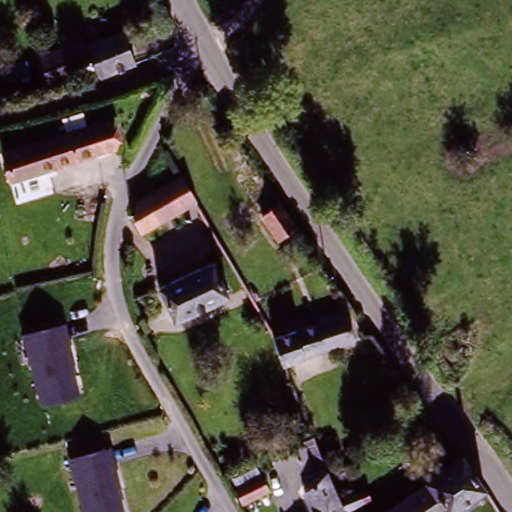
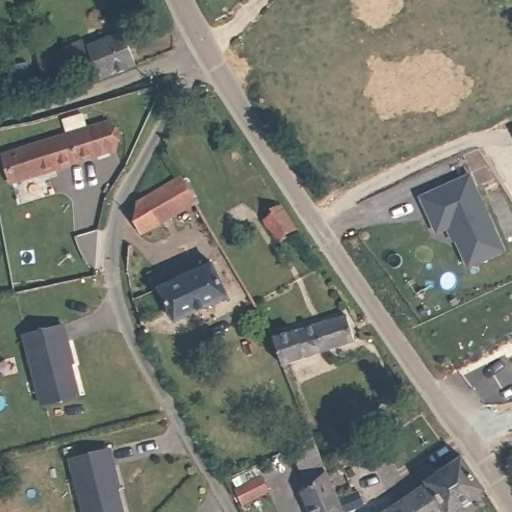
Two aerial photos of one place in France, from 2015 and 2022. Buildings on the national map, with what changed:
unchanged [(90,47),(126,36),(137,68),(99,80),(90,47)]
unchanged [(89,76),(48,90),(35,52),(45,49),(48,57),(79,47),(89,76)]
unchanged [(30,77),(27,86),(0,79),(0,77),(2,70),(30,77)]
unchanged [(5,160),(89,132),(97,159),(15,186),(5,160)]
unchanged [(260,162),(302,227),(283,240),(240,175),(260,162)]
new [(502,251),(468,266),(450,226),(437,232),(422,196),(468,175),(502,251)]
unchanged [(180,180),(199,211),(192,215),(185,209),(142,236),(135,226),(142,203),(180,180)]
unchanged [(162,287),(214,262),(230,297),(178,321),(162,287)]
unchanged [(285,368),(274,342),(345,316),(355,341),(285,368)]
unchanged [(79,394),(43,403),(25,333),(65,324),(79,394)]
unchanged [(308,492),(290,453),(313,442),(327,477),(340,505),(356,497),(365,492),(371,506),(358,512),(308,512),(300,497),(308,492)]
unchanged [(84,512),(70,458),(110,448),(123,512),(84,512)]
unchanged [(454,512),(387,512),(410,496),(460,461),(484,492),(454,512)]
unchanged [(255,470),(261,483),(240,495),(232,481),(255,470)]

